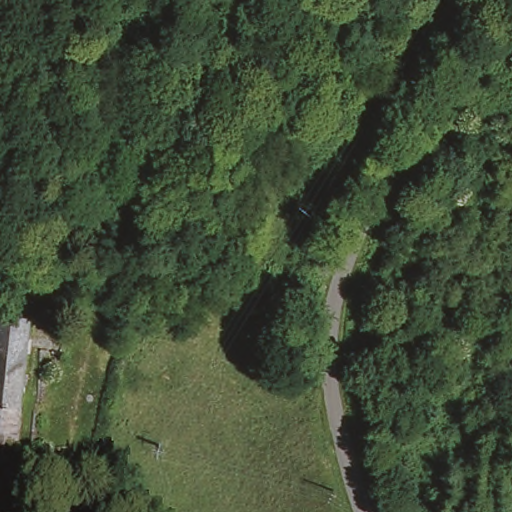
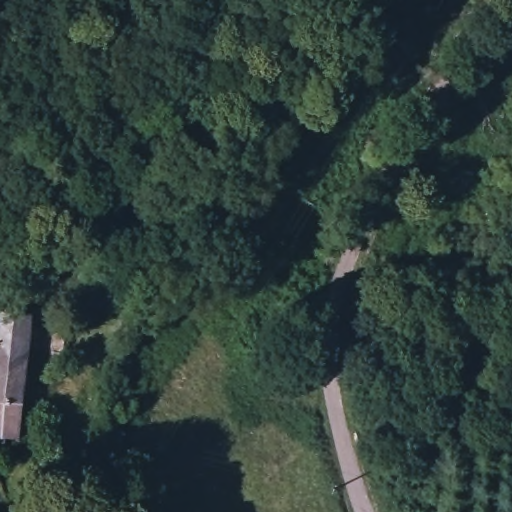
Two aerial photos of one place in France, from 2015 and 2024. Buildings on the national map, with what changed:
unchanged [(24,362),(23,409),(23,435),(0,435),(0,316),(27,316),(24,362)]

